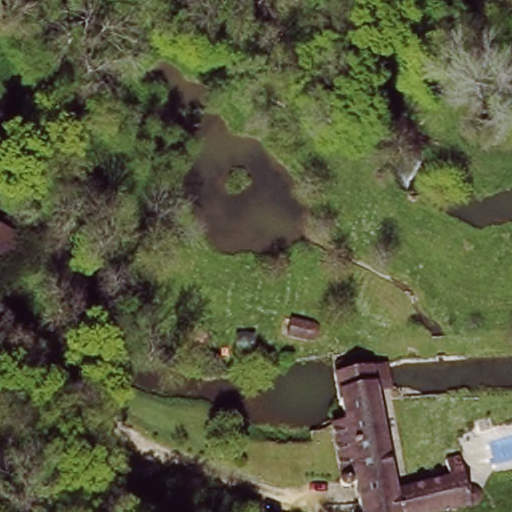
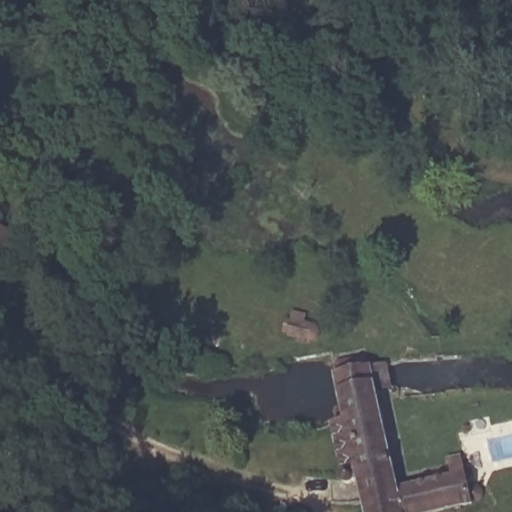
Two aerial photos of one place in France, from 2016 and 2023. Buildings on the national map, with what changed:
unchanged [(12,268),(0,261),(0,227),(27,242),(12,268)]
unchanged [(471,466),(480,502),(443,512),(363,512),(360,501),(354,473),(342,476),(330,417),(341,416),(332,370),(376,361),(390,428),(400,475),(471,466)]

